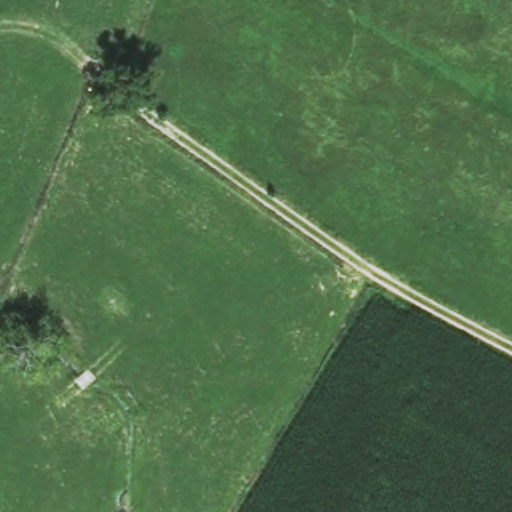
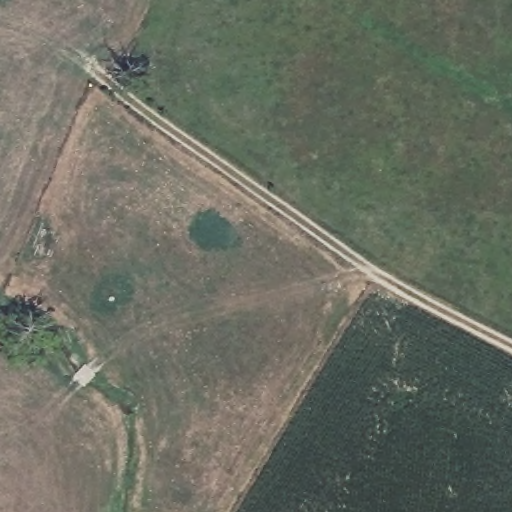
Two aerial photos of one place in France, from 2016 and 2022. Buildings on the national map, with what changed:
unchanged [(80,294),(89,286),(98,296),(87,302),(80,294)]

